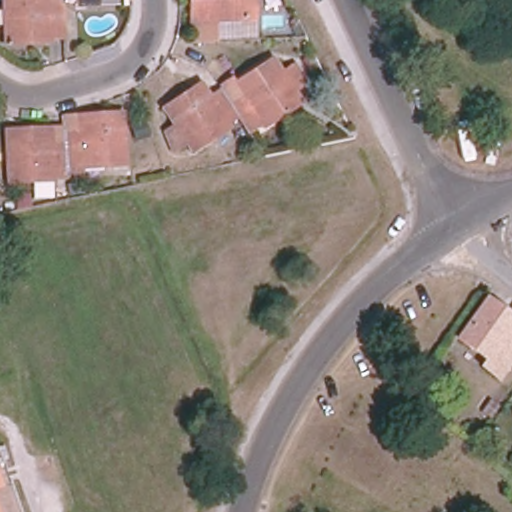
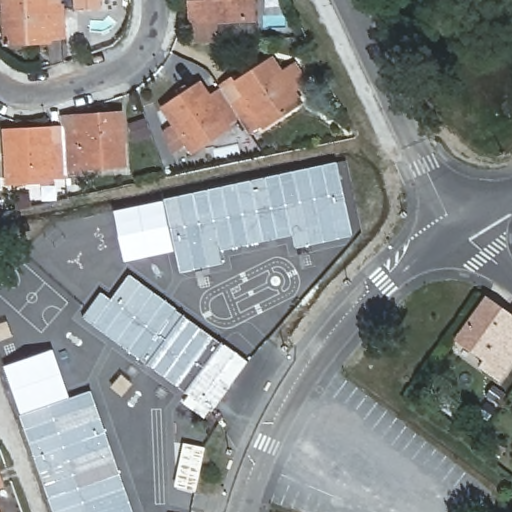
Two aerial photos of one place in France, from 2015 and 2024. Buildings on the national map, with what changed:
unchanged [(32,48),(9,50),(8,31),(0,31),(0,17),(7,17),(7,0),(66,0),(68,42),(53,43),(53,47),(32,48)]
unchanged [(194,24),(193,0),(259,0),(259,21),(194,24)]
unchanged [(213,41),(197,42),(196,27),(212,27),(213,41)]
unchanged [(266,125),(254,132),(243,116),(225,90),(223,87),(235,80),(238,84),(276,58),(286,73),(299,64),(311,82),(297,91),(305,102),(287,116),(269,127),(266,125)]
unchanged [(215,140),(196,152),(189,143),(176,152),(169,132),(178,126),(167,109),(205,83),(214,97),(225,90),(243,116),(230,124),(232,127),(215,140)]
unchanged [(62,117),(121,114),(124,166),(80,169),(80,173),(65,174),(62,129),(62,117)]
unchanged [(149,135),(134,140),(129,126),(144,121),(149,135)]
unchanged [(65,174),(65,177),(52,177),(52,182),(7,184),(4,132),(62,129),(65,174)]
new [(353,236),(295,249),(292,235),(222,250),(226,263),(182,273),(178,251),(127,262),(116,211),(166,200),(338,162),(353,236)]
new [(103,293),(113,301),(131,275),(248,362),(204,419),(184,403),(190,395),(85,317),(103,293)]
unchanged [(480,367),(486,360),(457,339),(485,301),(498,310),(493,317),(506,327),(512,319),(512,356),(496,378),(480,367)]
new [(72,400),(92,392),(134,512),(56,512),(22,416),(6,366),(54,350),(72,400)]
unchanged [(499,406),(491,401),(501,386),(509,392),(499,406)]
unchanged [(505,448),(500,457),(485,447),(491,438),(505,448)]

